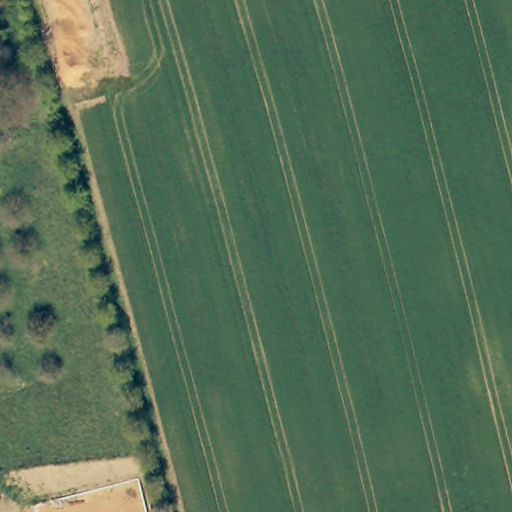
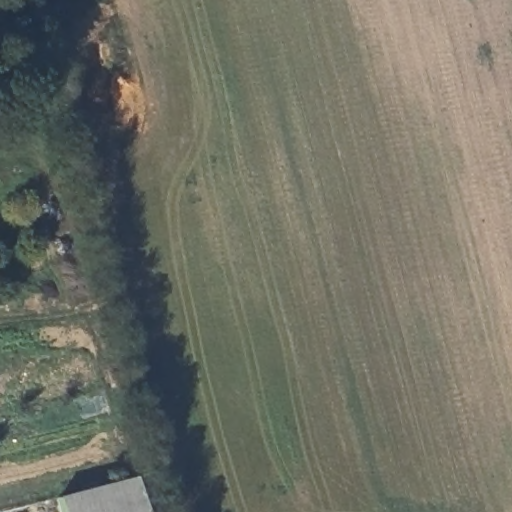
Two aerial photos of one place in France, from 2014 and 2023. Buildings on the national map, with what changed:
new [(145,512),(61,512),(57,497),(135,476),(145,512)]

